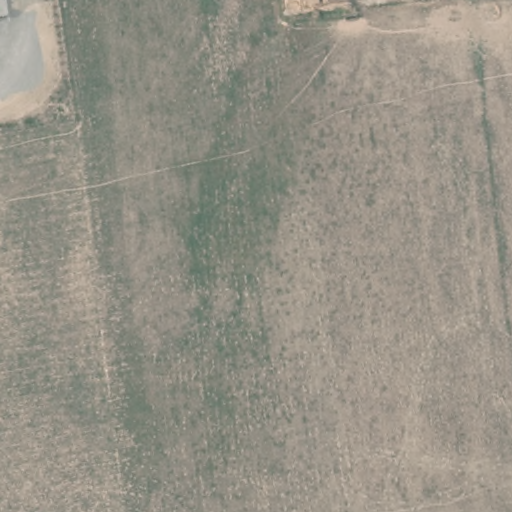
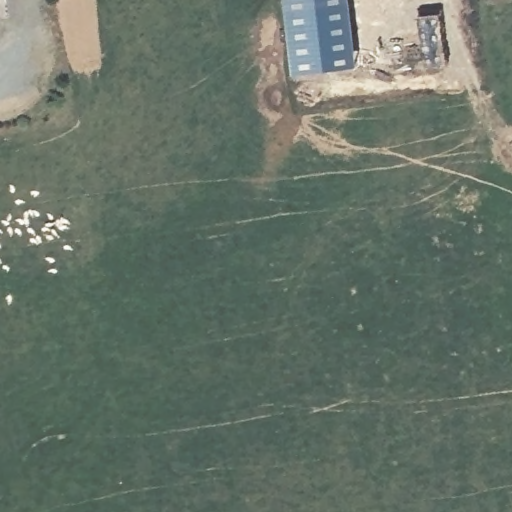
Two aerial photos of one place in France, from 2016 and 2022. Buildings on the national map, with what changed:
unchanged [(347,2),(283,11),(282,0),(347,0),(347,2)]
new [(355,63),(291,70),(283,11),(347,2),(355,63)]

